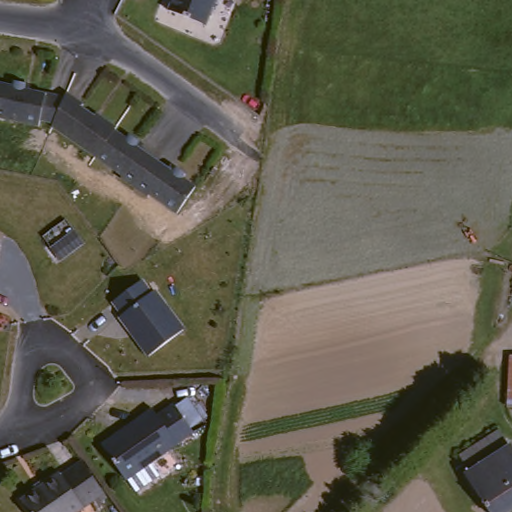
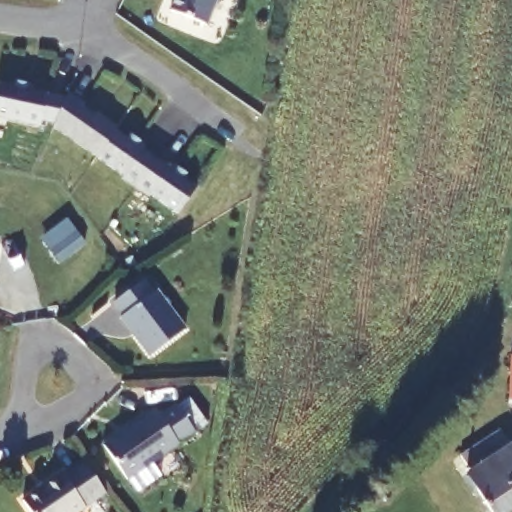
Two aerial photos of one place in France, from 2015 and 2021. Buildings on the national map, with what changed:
unchanged [(170,7),(173,0),(217,0),(208,22),(170,7)]
unchanged [(80,138),(65,126),(67,123),(50,117),(47,124),(0,109),(11,73),(28,78),(30,74),(45,78),(43,83),(76,93),(79,89),(95,101),(93,104),(100,109),(80,138)]
unchanged [(100,109),(110,118),(112,115),(128,128),(126,130),(133,136),(135,133),(151,146),(149,149),(184,175),(185,173),(196,182),(195,184),(206,193),(185,220),(185,221),(158,199),(155,203),(128,181),(131,178),(80,138),(100,109)]
unchanged [(189,327),(153,359),(120,303),(152,275),(189,327)]
unchanged [(140,489),(130,476),(130,477),(106,444),(156,407),(161,413),(177,402),(196,429),(155,459),(165,472),(140,489)]
unchanged [(502,512),(496,512),(471,472),(461,456),(498,427),(511,446),(512,445),(512,505),(502,512)]
unchanged [(30,501),(89,459),(109,490),(79,511),(80,512),(37,512),(30,501)]

